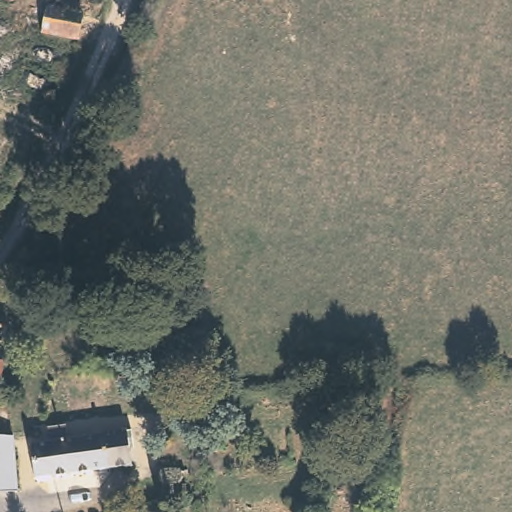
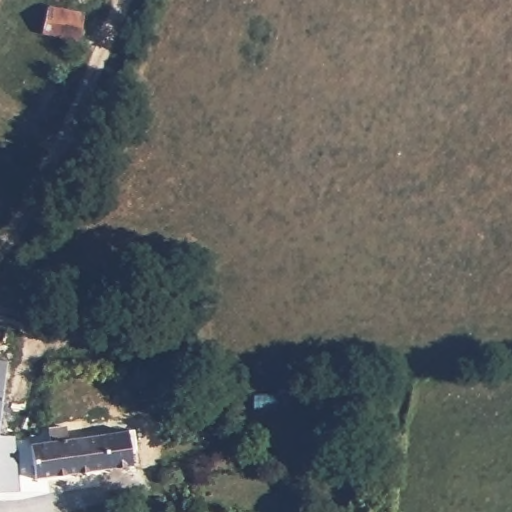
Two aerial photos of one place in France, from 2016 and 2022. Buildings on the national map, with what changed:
unchanged [(81,15),(74,38),(37,26),(45,4),(81,15)]
unchanged [(11,326),(7,361),(0,360),(0,324),(11,326)]
unchanged [(7,361),(1,408),(0,408),(0,360),(7,361)]
unchanged [(1,408),(0,420),(0,408),(1,408)]
unchanged [(130,448),(126,450),(128,468),(72,475),(33,479),(29,444),(50,441),(50,436),(64,434),(66,440),(128,432),(130,448)]
unchanged [(16,440),(17,492),(0,492),(0,438),(16,440)]

